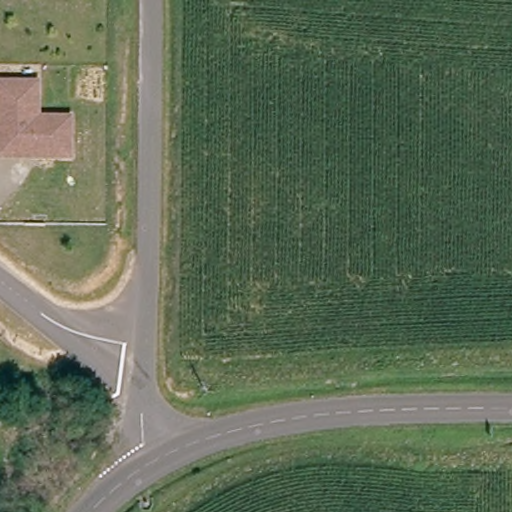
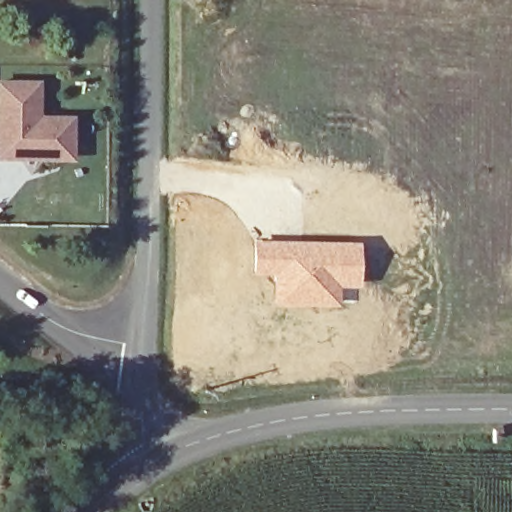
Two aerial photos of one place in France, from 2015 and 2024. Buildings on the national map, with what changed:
unchanged [(68,162),(53,161),(0,161),(0,133),(0,86),(35,86),(35,121),(53,121),(68,122),(68,162)]
new [(254,239),(359,241),(356,288),(340,288),(339,306),(273,304),(272,275),(253,275),(254,239)]

